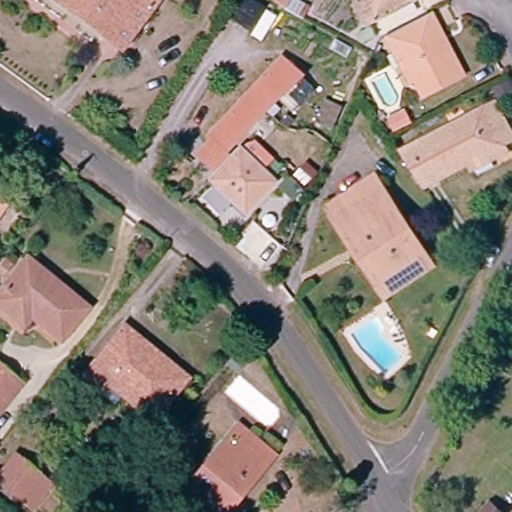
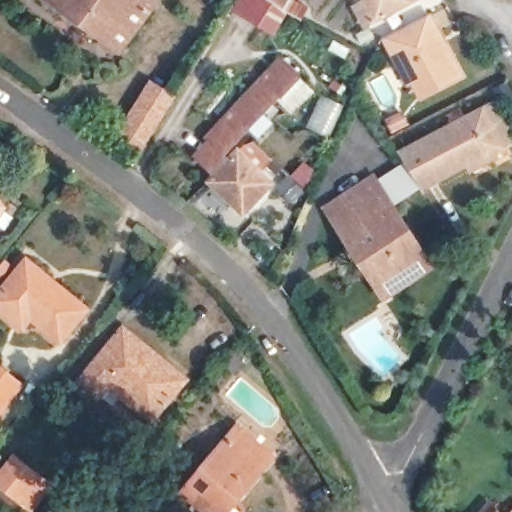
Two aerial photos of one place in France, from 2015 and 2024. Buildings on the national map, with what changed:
unchanged [(114,48),(53,0),(150,0),(114,48)]
unchanged [(280,5),(274,0),(283,0),(280,5)]
unchanged [(370,18),(360,0),(405,0),(370,18)]
unchanged [(389,58),(381,45),(385,36),(410,24),(427,14),(446,47),(462,76),(421,98),(405,70),(398,74),(389,58)]
unchanged [(271,54),(310,80),(291,107),(276,96),(260,114),(244,99),(271,54)]
new [(117,134),(151,79),(179,95),(143,150),(117,134)]
unchanged [(196,158),(211,141),(209,139),(244,99),(260,114),(224,152),(210,169),(196,158)]
unchanged [(442,170),(418,183),(400,149),(474,108),(493,142),(478,150),(483,161),(469,168),(450,181),(442,170)]
unchanged [(270,187),(241,218),(206,186),(234,155),(270,187)]
unchanged [(335,225),(323,208),(375,175),(433,269),(392,295),(382,301),(335,225)]
unchanged [(82,303),(60,330),(37,311),(27,323),(0,301),(0,289),(26,257),(82,303)]
unchanged [(185,378),(155,413),(112,380),(100,394),(84,381),(127,330),(185,378)]
unchanged [(17,385),(0,406),(0,371),(17,385)]
unchanged [(214,512),(184,487),(234,426),(270,456),(223,512),(214,512)]
unchanged [(35,483),(16,505),(0,491),(0,480),(14,464),(35,483)]
unchanged [(483,512),(492,501),(504,512),(483,512)]

